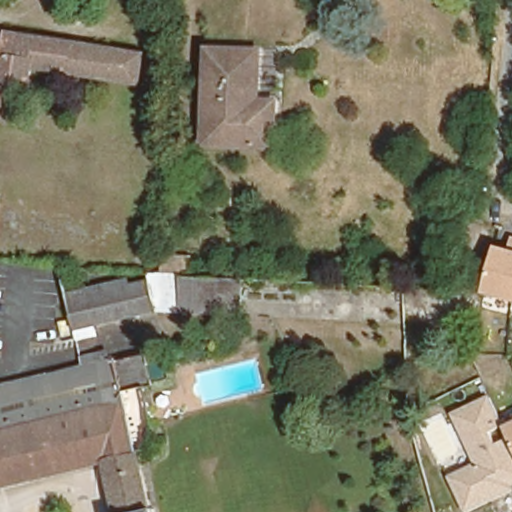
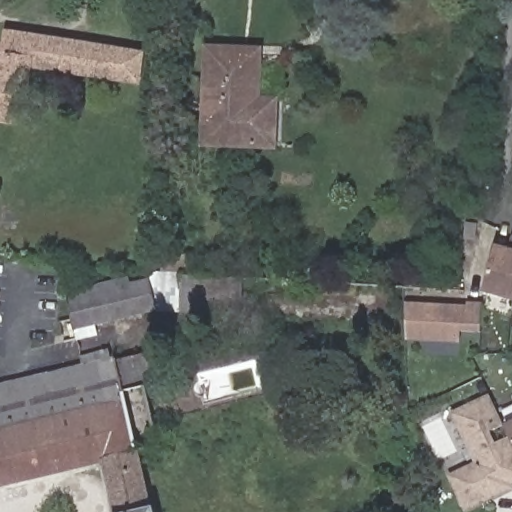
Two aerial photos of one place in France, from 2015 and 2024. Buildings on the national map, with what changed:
unchanged [(12,117),(0,116),(0,38),(2,27),(125,43),(121,73),(28,61),(25,80),(18,79),(16,87),(18,88),(12,117)]
unchanged [(260,42),(257,92),(281,91),(275,147),(198,145),(201,46),(260,42)]
unchanged [(497,246),(512,250),(512,303),(484,295),(497,246)]
unchanged [(241,280),(238,318),(198,315),(179,314),(156,312),(70,329),(61,291),(159,272),(157,256),(192,253),(194,276),(201,276),(225,278),(241,280)]
new [(406,340),(406,302),(466,306),(466,301),(482,302),(481,332),(460,332),(459,343),(406,340)]
unchanged [(0,482),(0,380),(113,352),(156,348),(159,377),(143,383),(160,444),(139,450),(150,506),(152,512),(112,512),(98,463),(0,482)]
unchanged [(479,466),(456,415),(491,398),(505,425),(512,422),(512,485),(467,508),(452,478),(479,466)]

